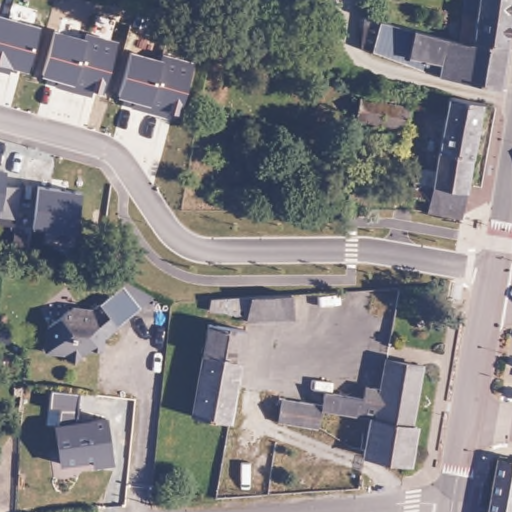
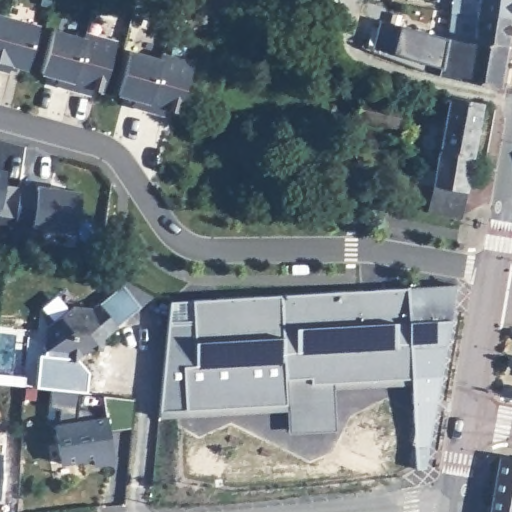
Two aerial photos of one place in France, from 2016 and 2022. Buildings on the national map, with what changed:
unchanged [(468,13),(467,0),(470,0),(512,0),(512,30),(480,30),(479,14),(468,13)]
unchanged [(7,70),(0,68),(0,14),(40,25),(27,68),(9,63),(7,70)]
unchanged [(512,69),(511,73),(472,73),(465,73),(381,60),(382,29),(416,30),(480,30),(512,30),(512,69)]
unchanged [(118,41),(104,92),(93,89),(92,95),(57,85),(57,79),(41,75),(56,30),(85,37),(89,32),(118,41)]
unchanged [(199,61),(179,117),(131,105),(132,99),(120,96),(135,51),(161,60),(165,51),(199,61)]
unchanged [(427,220),(428,205),(410,203),(415,172),(432,175),(444,100),(475,105),(458,224),(427,220)]
unchanged [(363,137),(367,117),(416,125),(414,144),(363,137)]
unchanged [(6,185),(20,187),(16,219),(0,217),(0,170),(7,171),(6,185)]
unchanged [(32,228),(40,187),(82,193),(77,232),(32,228)]
unchanged [(129,281),(152,295),(95,342),(99,304),(129,281)]
new [(171,301),(455,285),(426,466),(416,468),(412,385),(333,388),(336,429),(290,432),(288,410),(160,416),(171,301)]
demolished [(247,290),(245,315),(202,310),(205,292),(247,290)]
unchanged [(77,356),(67,347),(49,345),(52,318),(72,302),(80,310),(87,304),(99,304),(95,342),(77,356)]
demolished [(227,422),(187,415),(202,322),(242,327),(227,422)]
demolished [(411,421),(416,422),(410,460),(362,452),(367,417),(317,410),(315,427),(273,420),(277,400),(317,405),(321,392),(360,398),(362,385),(378,387),(382,357),(420,362),(411,421)]
unchanged [(59,422),(87,420),(110,417),(115,462),(97,464),(96,457),(82,459),(62,461),(59,422)]
unchanged [(494,457),(512,458),(512,512),(487,512),(494,457)]

